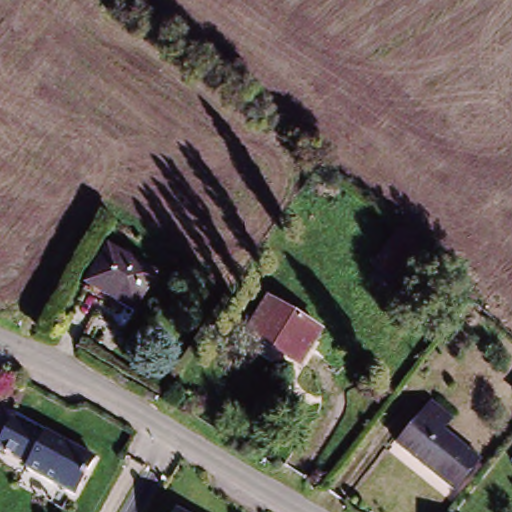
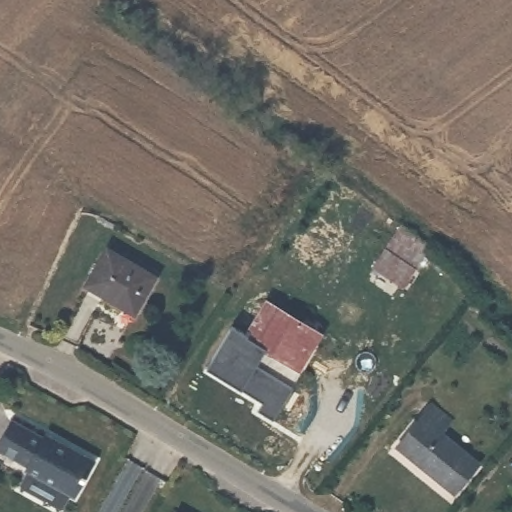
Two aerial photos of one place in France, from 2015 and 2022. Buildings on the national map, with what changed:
unchanged [(401,226),(429,244),(402,284),(374,266),(401,226)]
unchanged [(106,246),(157,274),(135,312),(85,284),(106,246)]
new [(255,363),(292,386),(273,418),(257,409),(262,401),(242,388),(207,367),(234,326),(242,332),(261,303),(267,307),(247,340),(264,350),(255,363)]
unchanged [(290,366),(247,340),(267,307),(318,338),(302,367),(299,371),(290,366)]
unchanged [(397,450),(430,408),(450,425),(440,438),(475,467),(453,496),(426,474),(418,467),(397,450)]
unchanged [(30,470),(32,466),(0,449),(15,420),(47,437),(49,433),(74,446),(97,459),(77,495),(30,470)]

